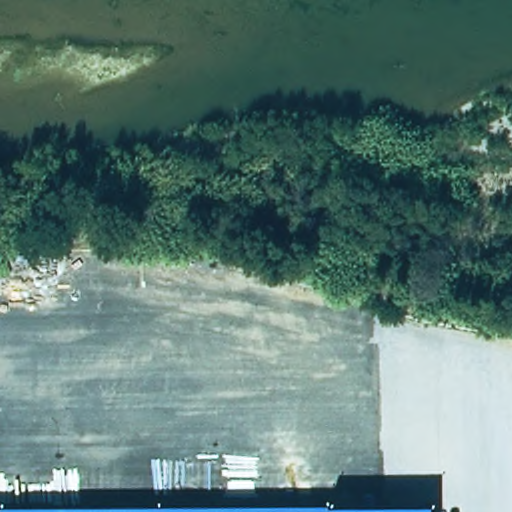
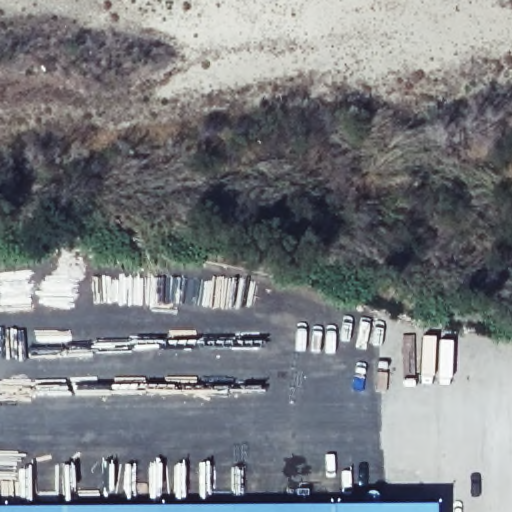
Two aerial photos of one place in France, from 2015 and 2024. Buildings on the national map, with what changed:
unchanged [(444,510),(445,512),(308,512),(444,510)]

